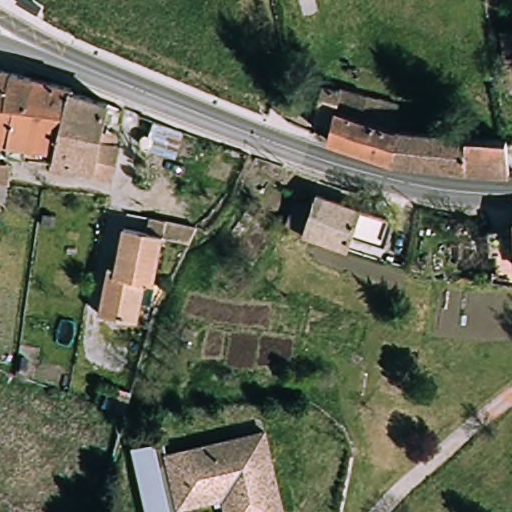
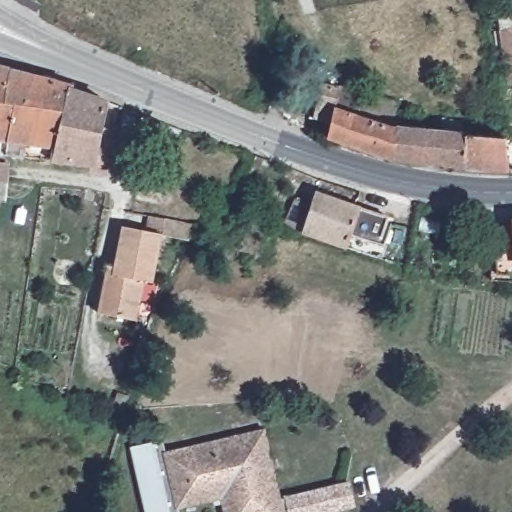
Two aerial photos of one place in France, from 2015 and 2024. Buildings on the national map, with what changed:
unchanged [(507,41),(512,39),(512,67),(507,41)]
unchanged [(3,142),(0,141),(0,66),(17,72),(3,142)]
unchanged [(36,159),(1,152),(3,142),(17,72),(73,92),(53,161),(36,159)]
unchanged [(73,92),(101,102),(102,122),(100,149),(96,176),(75,174),(75,167),(53,161),(73,92)]
unchanged [(408,118),(405,135),(397,167),(316,141),(334,95),(366,105),(408,118)]
unchanged [(432,138),(437,127),(466,129),(465,140),(512,142),(512,178),(458,179),(397,167),(405,135),(432,138)]
unchanged [(8,185),(6,199),(3,198),(2,206),(0,206),(0,164),(8,165),(8,185)]
unchanged [(318,212),(321,196),(397,217),(390,242),(366,237),(363,252),(296,234),(291,230),(298,207),(318,212)]
unchanged [(198,227),(190,240),(148,228),(149,216),(198,227)]
unchanged [(491,282),(493,225),(512,225),(512,284),(491,282)]
unchanged [(143,290),(140,317),(99,315),(104,268),(117,270),(119,237),(151,238),(163,241),(158,291),(143,290)]
unchanged [(228,498),(177,510),(164,453),(267,431),(286,512),(231,512),(228,498)]
unchanged [(130,448),(162,442),(164,453),(177,510),(178,512),(145,512),(130,448)]
new [(341,512),(286,512),(283,497),(349,481),(356,508),(341,512)]

